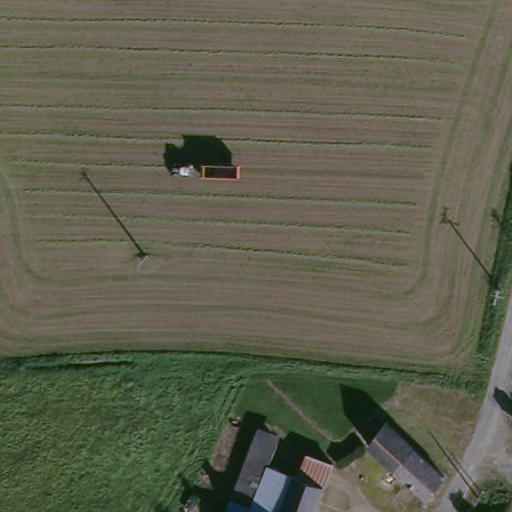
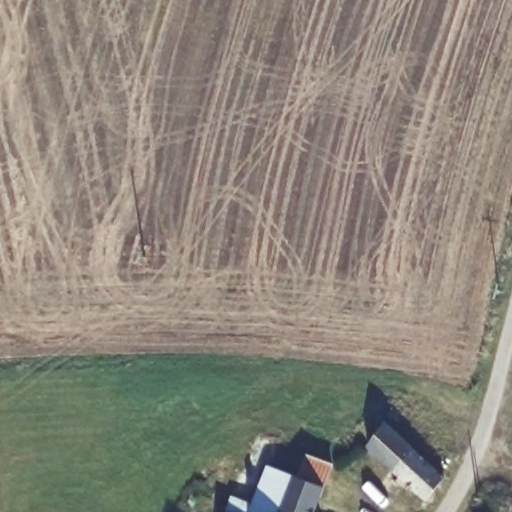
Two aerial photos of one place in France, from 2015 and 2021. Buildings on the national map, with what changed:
unchanged [(415,441),(445,468),(425,493),(367,442),(389,418),(415,441)]
unchanged [(290,430),(277,466),(280,467),(264,512),(236,512),(266,421),(290,430)]

